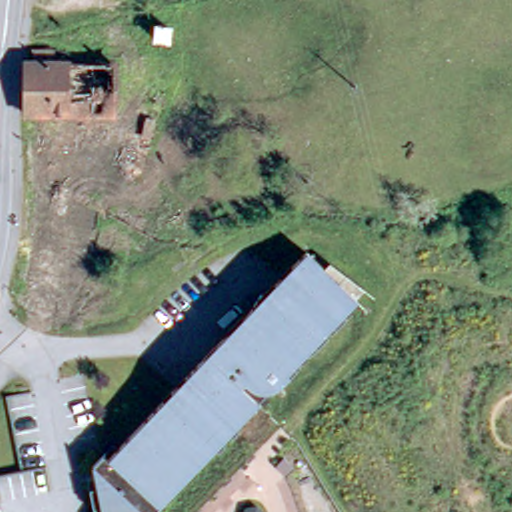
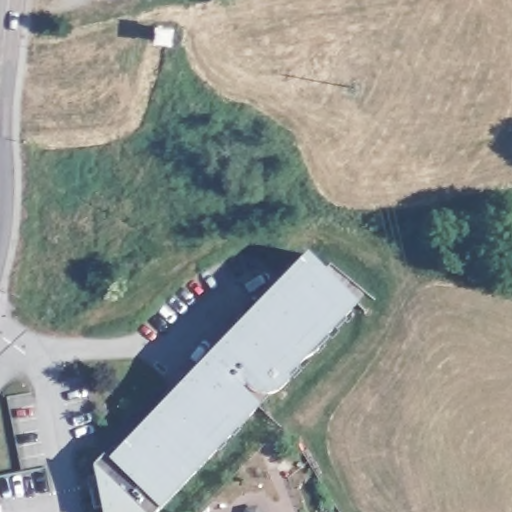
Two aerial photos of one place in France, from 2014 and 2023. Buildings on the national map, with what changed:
demolished [(24,63),(29,48),(53,46),(54,61),(116,61),(116,110),(26,111),(24,63)]
unchanged [(95,506),(89,507),(79,466),(100,444),(105,449),(294,251),(311,268),(317,262),(354,291),(345,301),(302,345),(305,348),(286,363),(275,374),(277,377),(267,387),(257,392),(143,512),(97,512),(95,506)]

